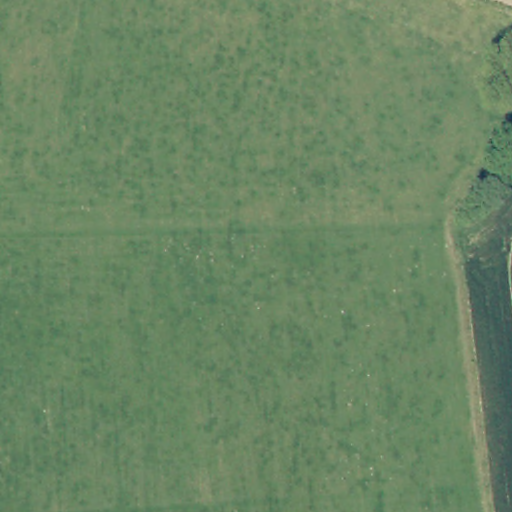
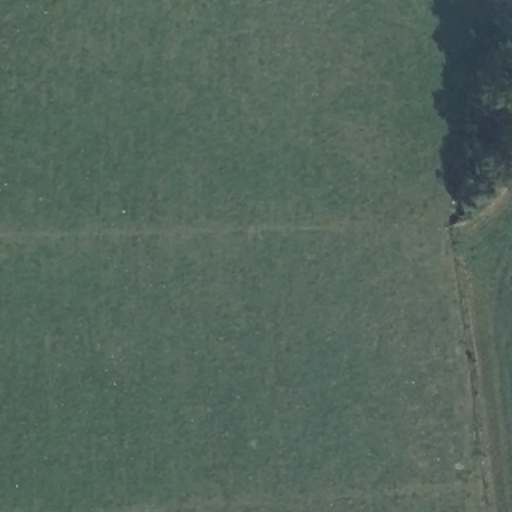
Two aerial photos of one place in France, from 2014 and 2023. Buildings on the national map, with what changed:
[]

